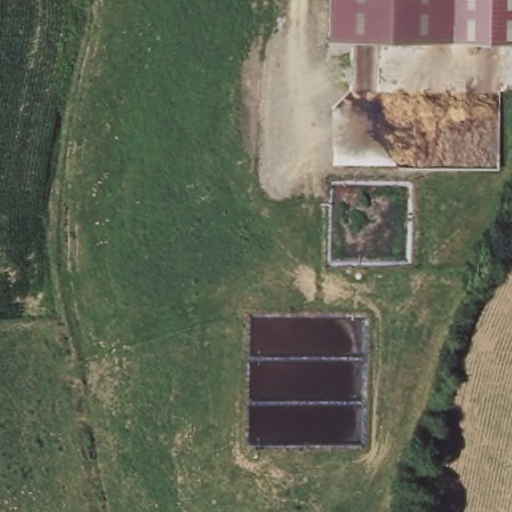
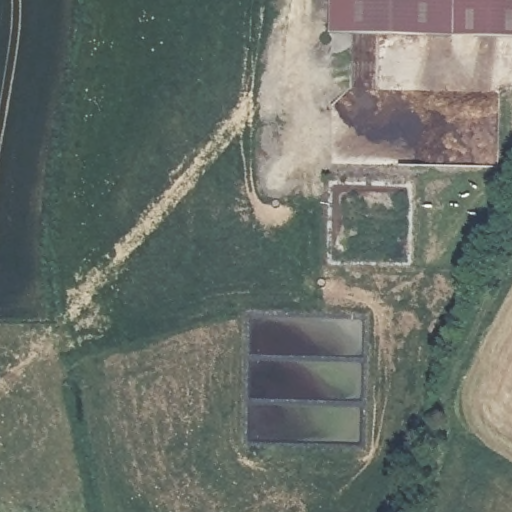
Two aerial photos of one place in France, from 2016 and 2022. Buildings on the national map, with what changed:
unchanged [(332,28),(333,0),(453,0),(453,30),(332,28)]
unchanged [(453,30),(453,0),(512,0),(512,33),(453,30)]

